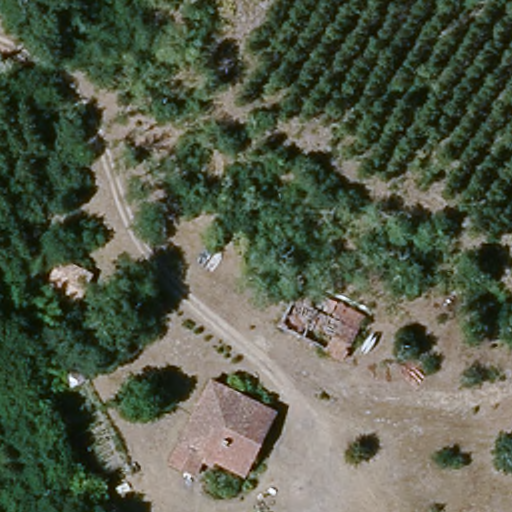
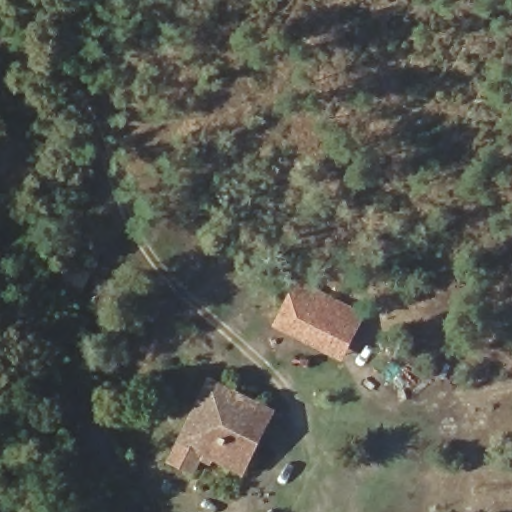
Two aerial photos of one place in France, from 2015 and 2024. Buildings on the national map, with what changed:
unchanged [(52,288),(65,260),(94,273),(82,302),(52,288)]
new [(296,277),(365,311),(341,361),(271,326),(296,277)]
demolished [(281,327),(295,301),(342,323),(330,350),(281,327)]
unchanged [(245,477),(205,458),(197,474),(175,462),(213,383),(277,414),(266,435),(255,457),(245,477)]

